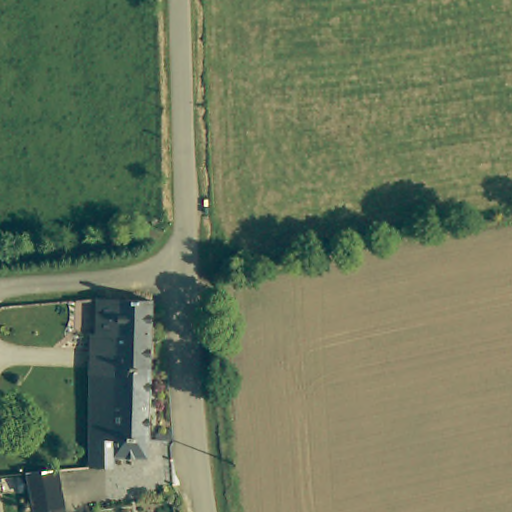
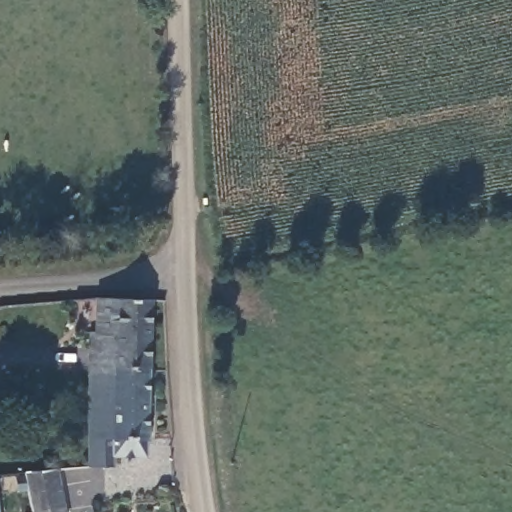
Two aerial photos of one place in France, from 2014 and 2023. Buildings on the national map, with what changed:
unchanged [(93,337),(99,337),(100,299),(155,300),(152,364),(117,363),(117,376),(92,375),(93,337)]
unchanged [(117,363),(152,364),(148,453),(135,453),(135,456),(112,456),(111,466),(87,465),(92,375),(117,376),(117,363)]
unchanged [(62,474),(68,512),(35,512),(29,473),(62,474)]

